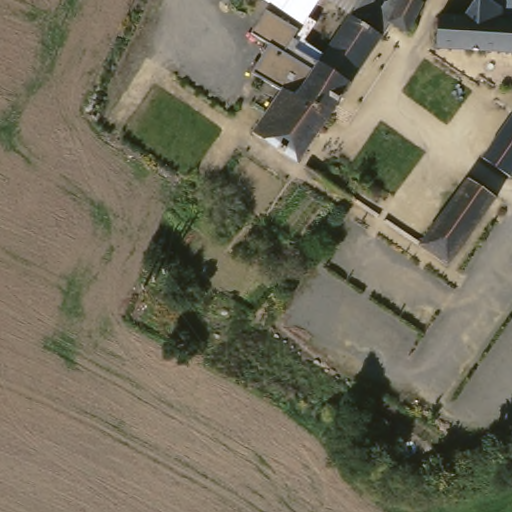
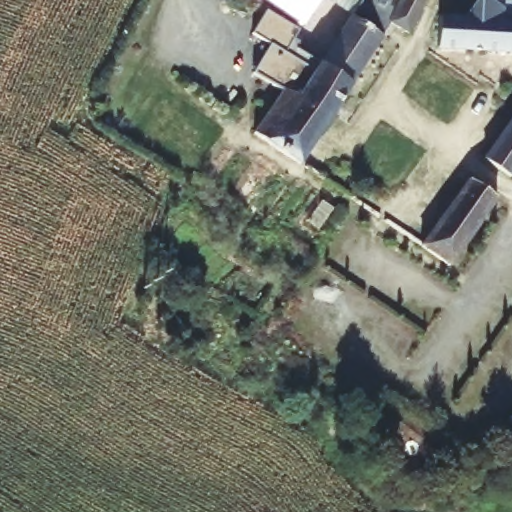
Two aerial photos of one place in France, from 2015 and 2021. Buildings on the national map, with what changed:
unchanged [(302,23),(267,0),(318,0),(302,23)]
unchanged [(390,22),(377,38),(353,21),(365,0),(414,0),(423,5),(409,33),(390,22)]
unchanged [(471,24),(473,10),(479,0),(478,0),(512,0),(512,62),(435,51),(439,19),(471,24)]
unchanged [(256,71),(276,43),(253,32),(267,10),(298,32),(286,50),(318,72),(353,21),(377,38),(384,44),(301,165),(254,135),(284,91),(256,71)]
unchanged [(480,173),(512,126),(512,183),(507,191),(480,173)]
unchanged [(423,222),(456,175),(480,189),(435,255),(425,248),(411,240),(423,222)]
unchanged [(435,255),(480,189),(508,206),(502,214),(476,250),(461,271),(435,255)]

